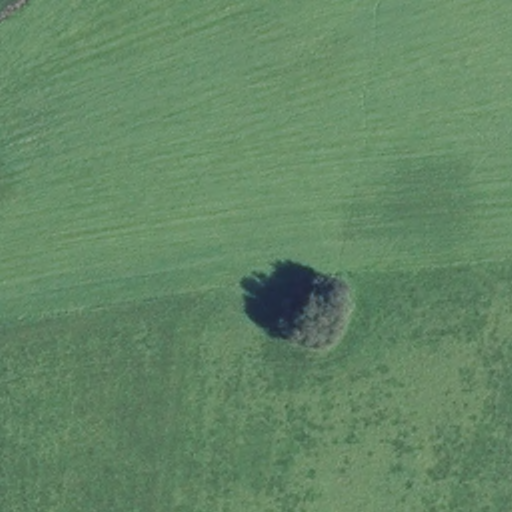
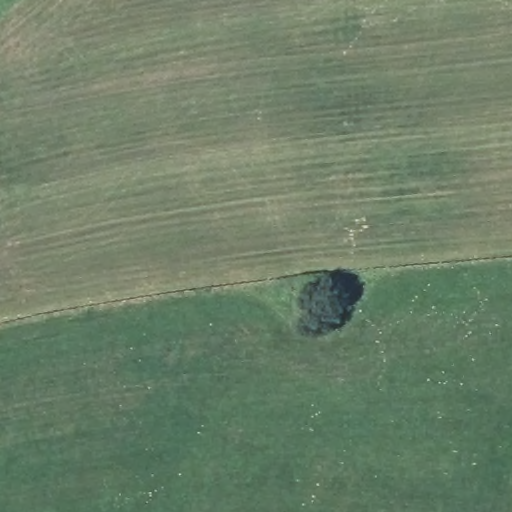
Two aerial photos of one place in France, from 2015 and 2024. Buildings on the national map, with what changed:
[]

